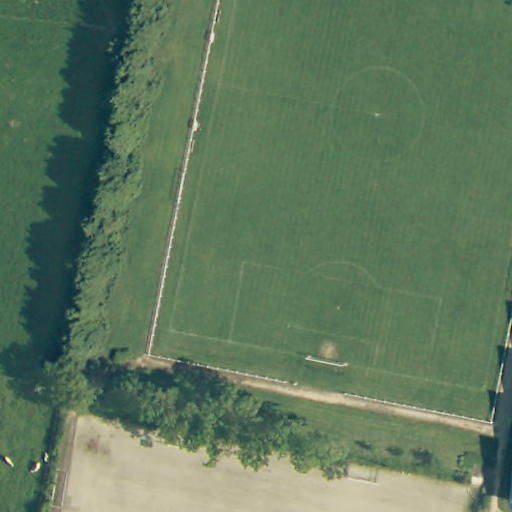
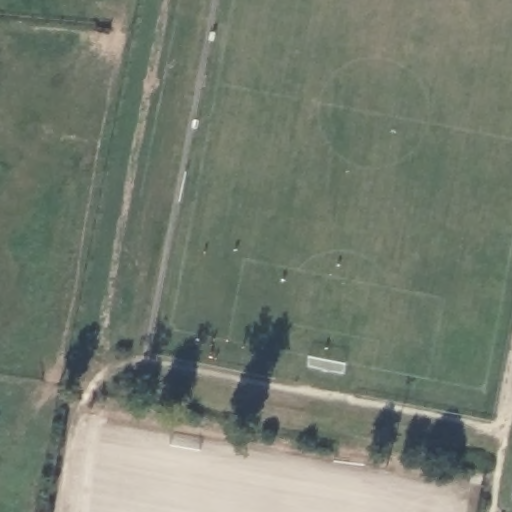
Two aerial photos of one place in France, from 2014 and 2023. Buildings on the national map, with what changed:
[]

